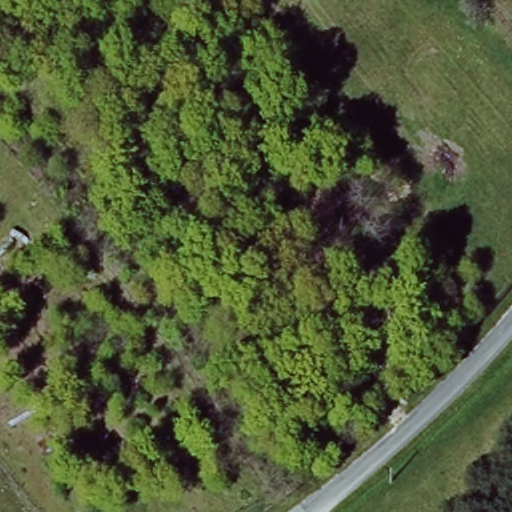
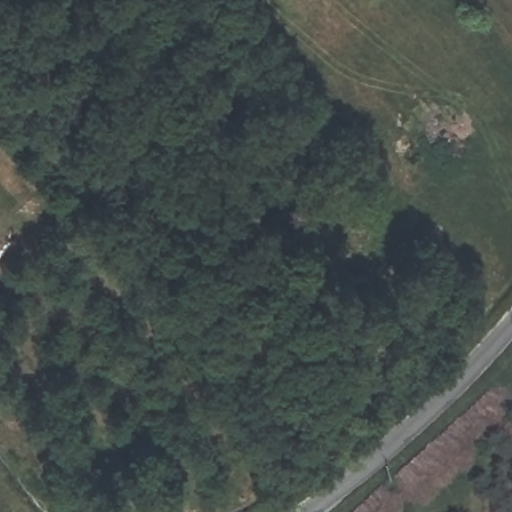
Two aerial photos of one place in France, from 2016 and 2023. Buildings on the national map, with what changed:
[]

